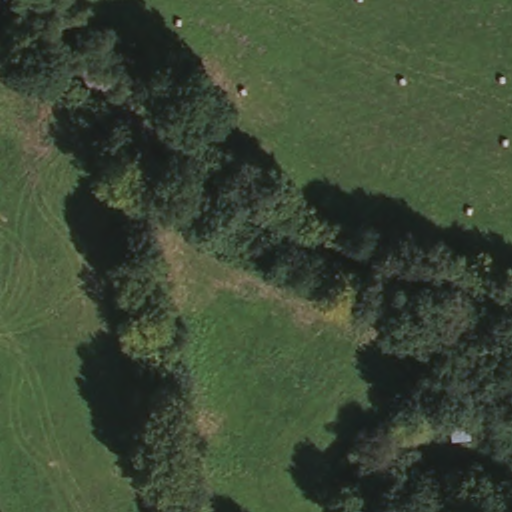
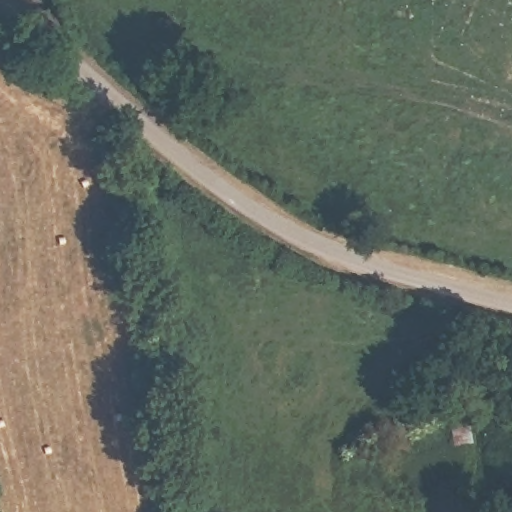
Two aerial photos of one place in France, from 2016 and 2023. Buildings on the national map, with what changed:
unchanged [(471,424),(473,451),(453,453),(449,429),(471,424)]

